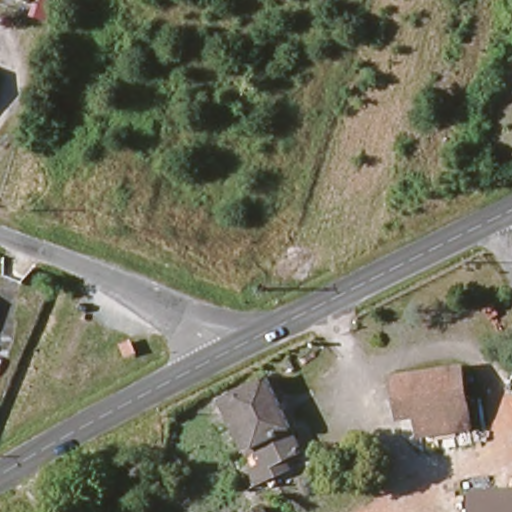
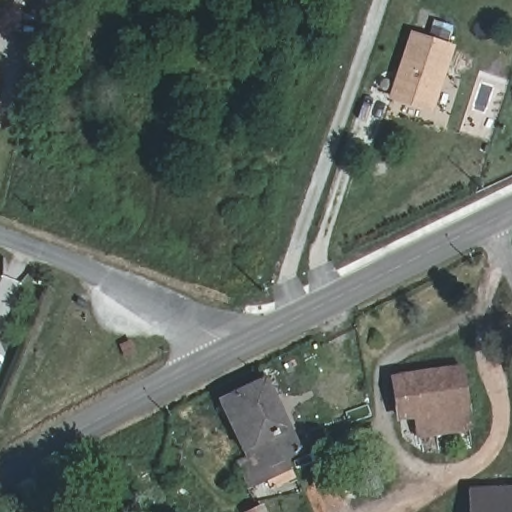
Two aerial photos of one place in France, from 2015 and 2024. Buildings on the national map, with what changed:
new [(415,34),(454,47),(433,110),(394,98),(415,34)]
unchanged [(465,371),(469,429),(421,434),(420,416),(400,417),(398,374),(465,371)]
unchanged [(305,451),(264,474),(269,484),(256,491),(242,463),(254,454),(229,401),(270,377),(305,451)]
unchanged [(471,491),(512,490),(512,512),(471,512),(471,491)]
demolished [(188,509),(188,512),(167,512),(188,509)]

